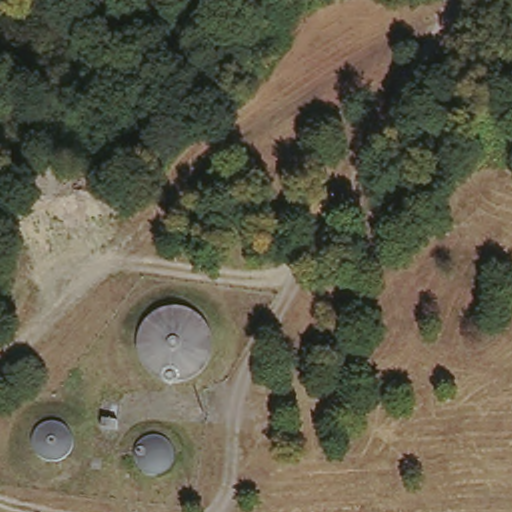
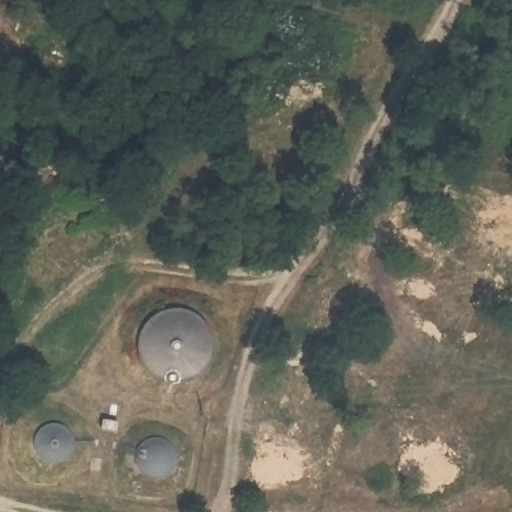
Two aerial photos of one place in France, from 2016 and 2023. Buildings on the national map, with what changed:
unchanged [(102,417),(117,418),(117,427),(101,425),(102,417)]

